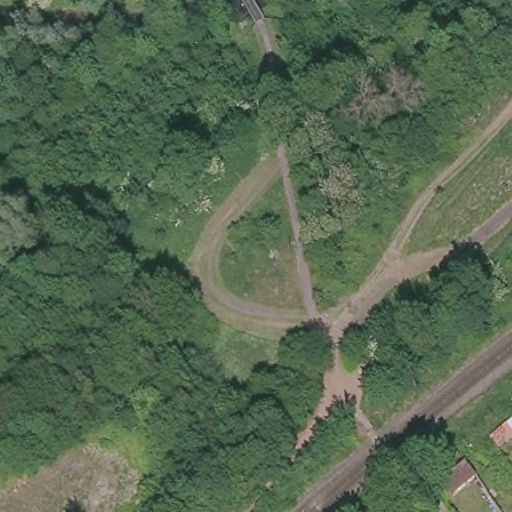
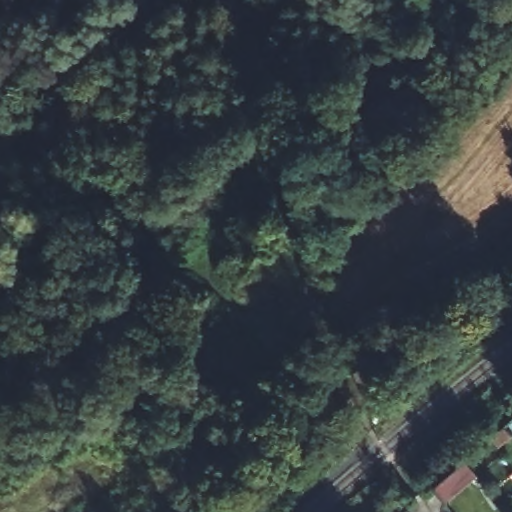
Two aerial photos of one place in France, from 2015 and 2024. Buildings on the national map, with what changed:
unchanged [(442,503),(432,488),(464,460),(476,474),(442,503)]

